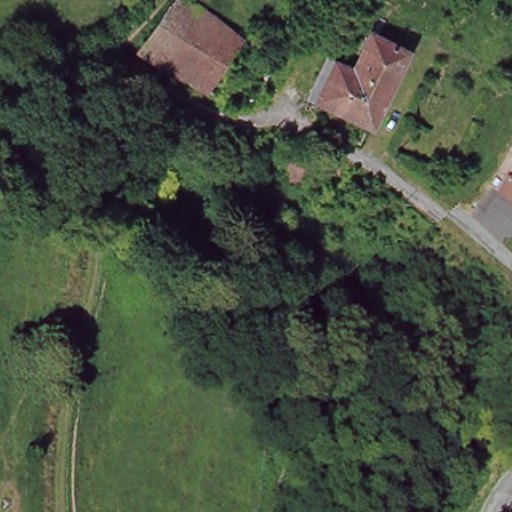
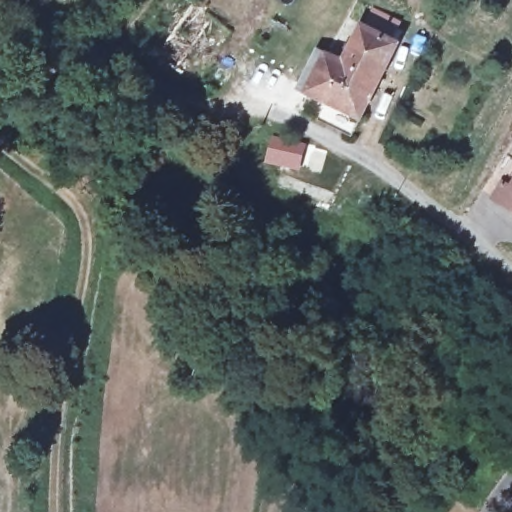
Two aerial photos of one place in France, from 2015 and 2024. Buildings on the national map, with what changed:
unchanged [(227,38),(218,51),(237,63),(255,76),(235,108),(132,54),(163,7),(170,0),(172,0),(200,19),(227,38)]
unchanged [(303,98),(318,71),(331,79),(338,64),(352,39),(388,58),(375,83),(360,110),(352,125),(303,98)]
unchanged [(302,148),(296,173),(265,164),(270,139),(302,148)]
unchanged [(494,199),(503,184),(512,189),(512,188),(512,210),(494,199)]

